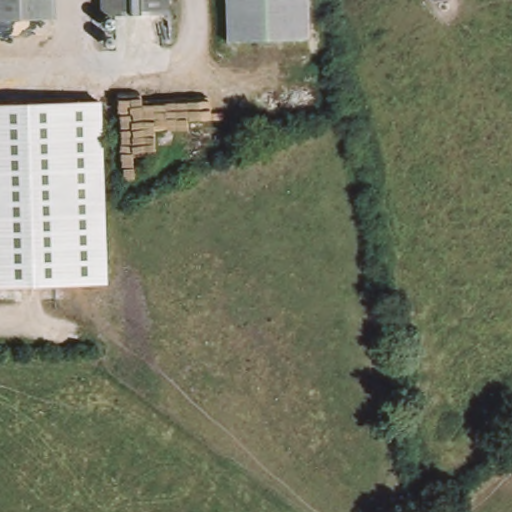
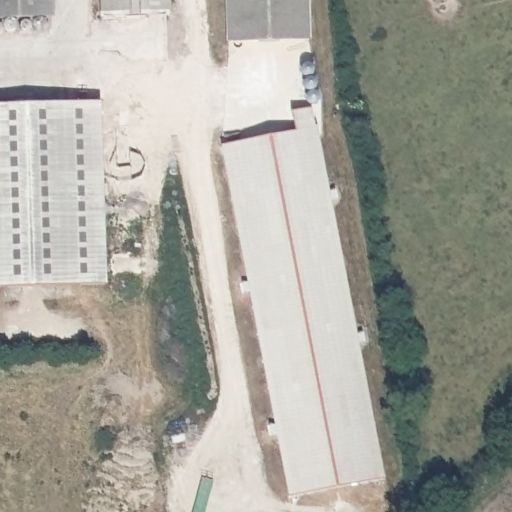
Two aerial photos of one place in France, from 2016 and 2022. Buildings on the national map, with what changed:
unchanged [(34,24),(0,25),(0,0),(33,0),(34,24)]
unchanged [(33,0),(47,0),(47,24),(34,24),(33,0)]
unchanged [(100,0),(163,0),(163,15),(100,17),(100,0)]
unchanged [(311,39),(226,42),(225,0),(310,0),(311,39)]
new [(220,146),(295,131),(290,112),(306,108),(306,103),(301,70),(305,67),(308,67),(310,67),(312,71),(314,78),(318,100),(318,103),(317,104),(315,106),(311,109),(384,478),(287,497),(220,146)]
unchanged [(106,104),(109,212),(111,286),(0,288),(0,106),(106,104)]

